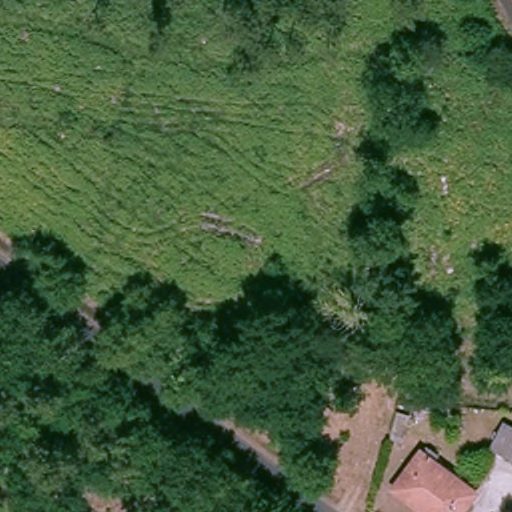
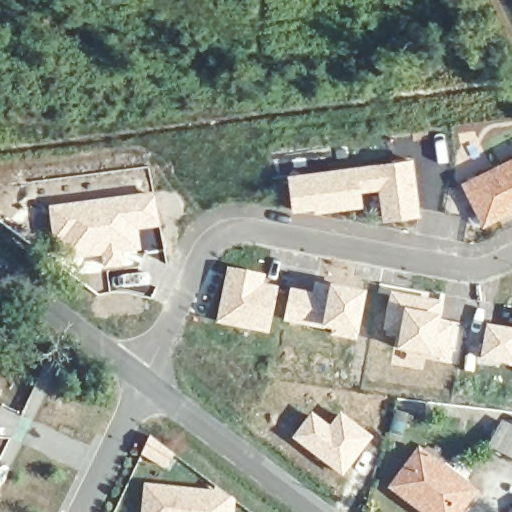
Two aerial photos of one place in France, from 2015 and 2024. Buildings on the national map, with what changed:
new [(462,184),(512,159),(512,215),(487,227),(462,184)]
new [(415,160),(423,217),(385,222),(379,191),(362,194),(364,205),(294,214),(289,176),(415,160)]
new [(138,231),(141,251),(125,254),(127,264),(104,267),(102,256),(66,260),(63,241),(53,242),(48,206),(155,192),(160,228),(138,231)]
new [(228,270),(267,278),(266,285),(279,288),(270,335),(217,324),(228,270)]
new [(291,288),(313,293),(314,284),(329,288),(330,285),(366,292),(357,335),(356,340),(331,336),(332,331),(284,321),(291,288)]
new [(443,302),(440,317),(439,321),(454,325),(447,360),(432,357),(396,350),(399,333),(383,330),(390,291),(443,302)]
new [(487,324),(512,329),(512,365),(480,360),(487,324)]
new [(358,425),(375,438),(343,478),(292,439),(312,413),(345,442),(358,425)]
unchanged [(512,452),(492,442),(504,420),(512,424),(512,452)]
unchanged [(463,512),(431,512),(397,486),(423,453),(476,495),(463,512)]
new [(145,485),(216,491),(217,487),(237,501),(235,512),(143,512),(145,485)]

